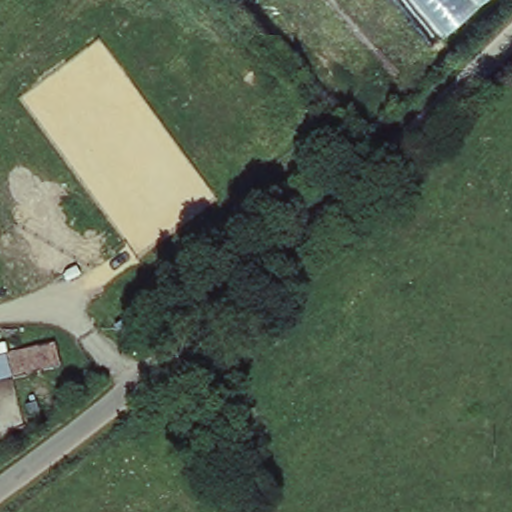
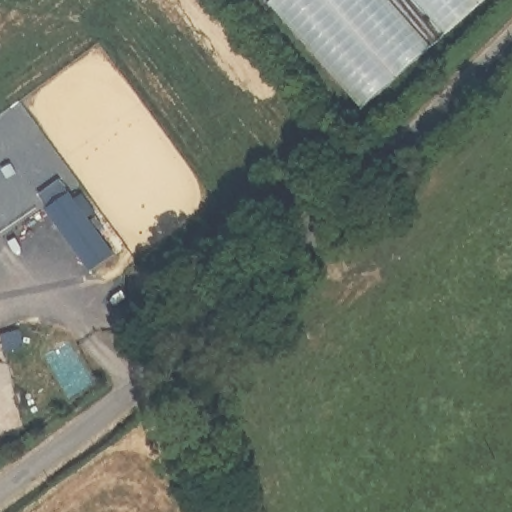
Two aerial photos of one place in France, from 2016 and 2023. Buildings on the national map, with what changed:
new [(396,0),(433,43),(361,107),(269,2),(272,0),(396,0)]
unchanged [(408,0),(490,0),(443,40),(408,0)]
new [(71,187),(114,250),(87,268),(45,207),(71,187)]
unchanged [(0,388),(0,359),(59,345),(65,371),(0,388)]

